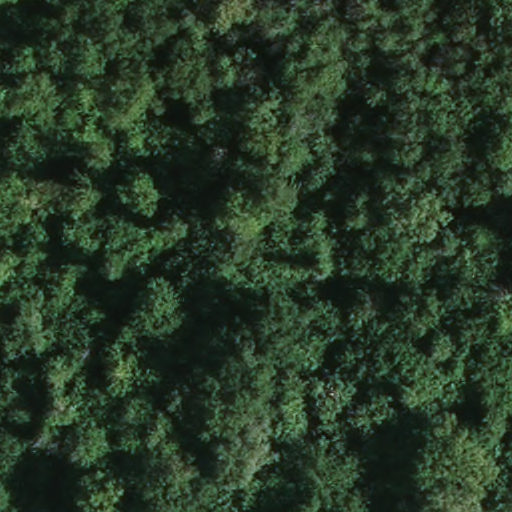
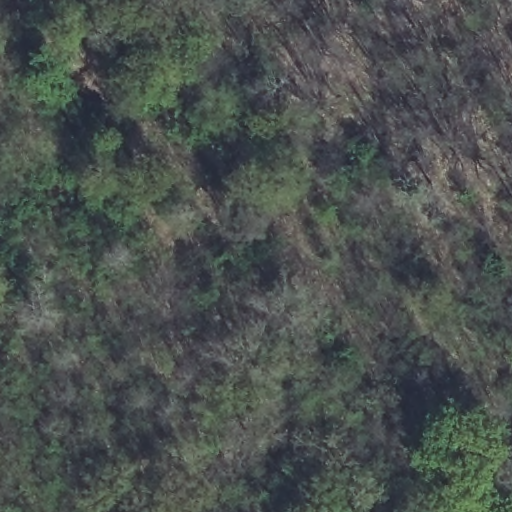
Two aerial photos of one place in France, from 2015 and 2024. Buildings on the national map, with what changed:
[]

